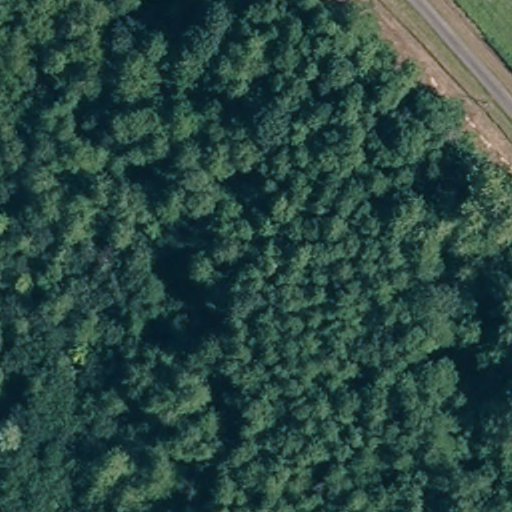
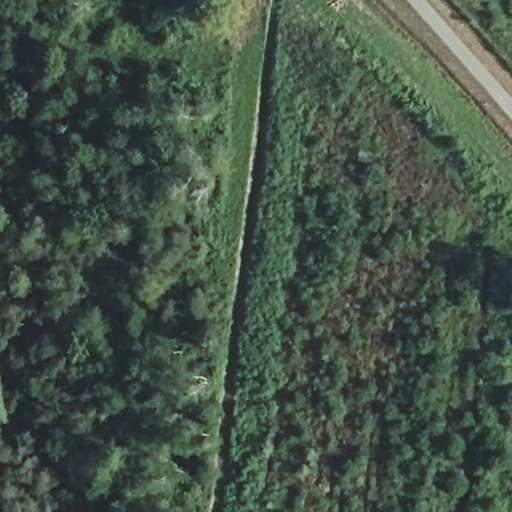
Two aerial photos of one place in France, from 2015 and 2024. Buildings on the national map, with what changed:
[]

